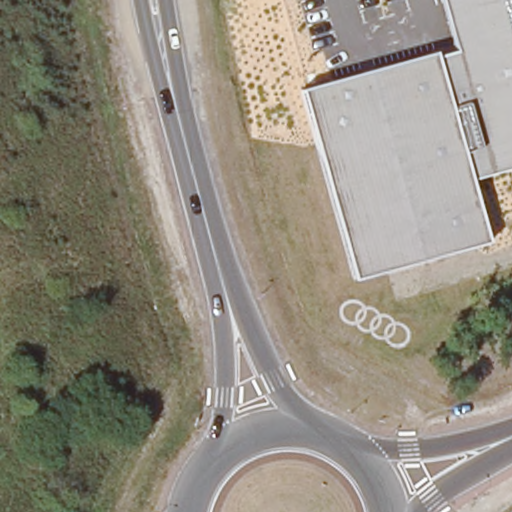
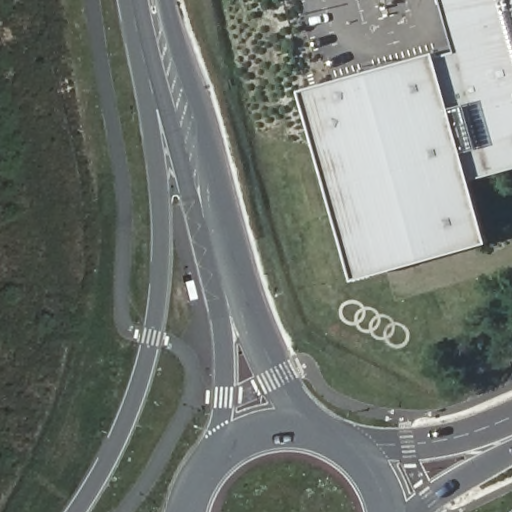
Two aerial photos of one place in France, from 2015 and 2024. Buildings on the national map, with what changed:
unchanged [(355,280),(301,90),(434,52),(436,55),(438,56),(458,51),(444,0),(512,0),(512,168),(473,178),(470,179),(489,242),(355,280)]

